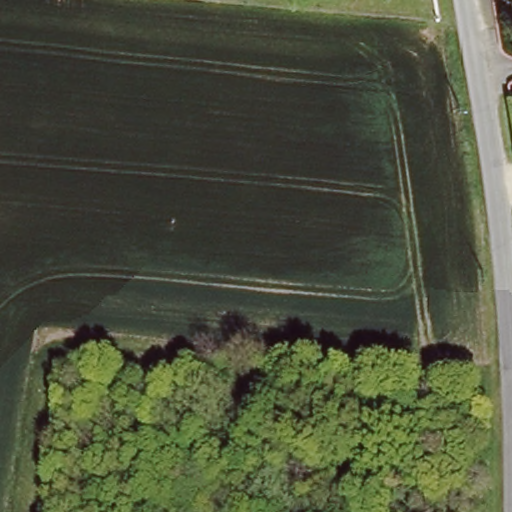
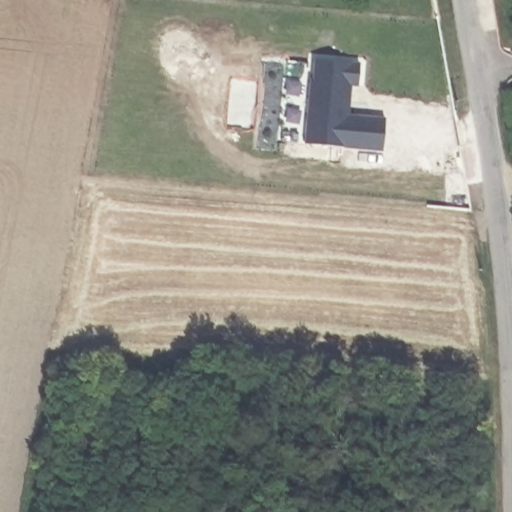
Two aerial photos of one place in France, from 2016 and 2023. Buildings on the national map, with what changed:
new [(311,79),(314,79),(315,60),(361,64),(359,87),(352,86),(350,114),(386,117),(383,150),(306,143),(311,79)]

